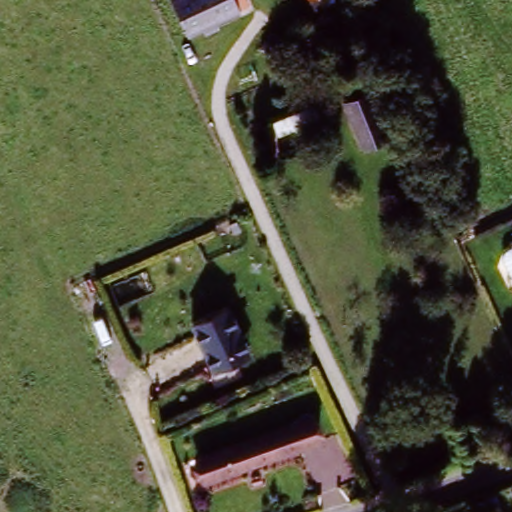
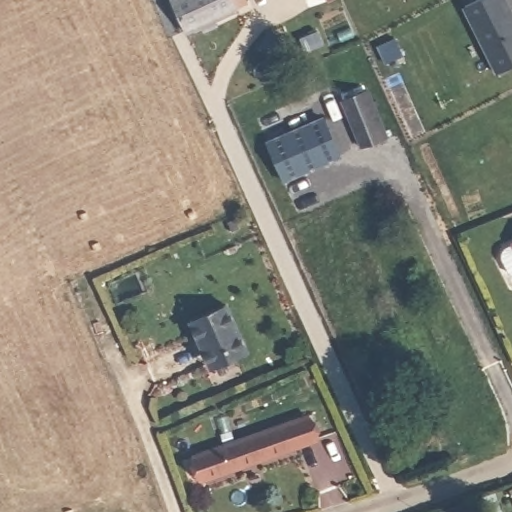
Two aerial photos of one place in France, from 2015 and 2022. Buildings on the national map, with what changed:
unchanged [(232,0),(238,13),(218,22),(221,29),(207,35),(205,30),(189,36),(175,0),(232,0)]
unchanged [(311,0),(318,0),(312,3),(311,0)]
new [(496,0),(501,9),(506,6),(512,17),(512,26),(512,69),(498,76),(470,24),(471,24),(465,9),(482,0),(496,0)]
unchanged [(361,149),(341,101),(369,88),(388,136),(361,149)]
demolished [(320,120),(277,136),(273,123),(313,106),(320,120)]
new [(341,159),(285,185),(265,140),(323,116),(341,159)]
unchanged [(185,322),(227,307),(245,355),(208,370),(185,322)]
unchanged [(198,487),(190,463),(314,420),(322,445),(198,487)]
unchanged [(464,505),(467,512),(448,512),(464,505)]

